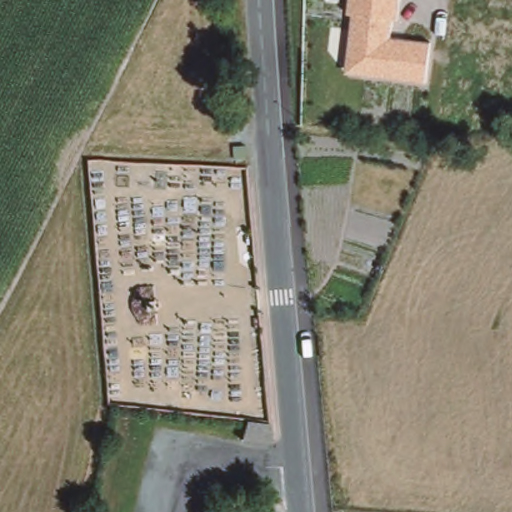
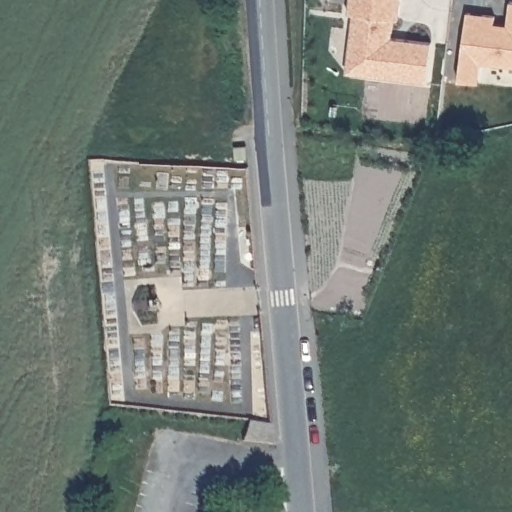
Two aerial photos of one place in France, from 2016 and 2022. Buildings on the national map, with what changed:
unchanged [(346,71),(351,15),(347,14),(349,0),(399,0),(397,19),(392,18),(390,38),(430,43),(425,84),(346,71)]
new [(480,63),(478,83),(458,81),(467,13),(494,15),(493,23),(506,25),(510,1),(512,1),(512,67),(480,63)]
unchanged [(272,435),(241,431),(246,412),(270,414),(272,435)]

